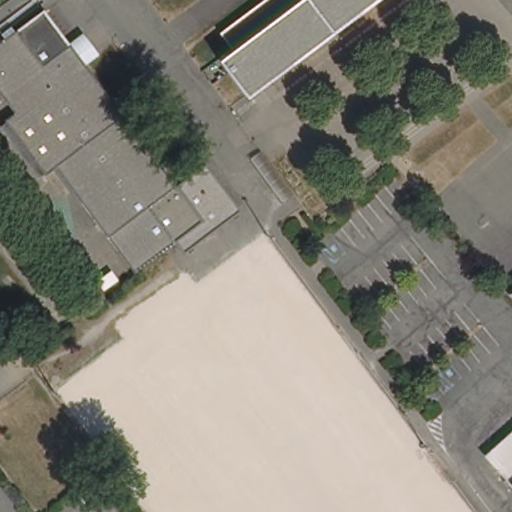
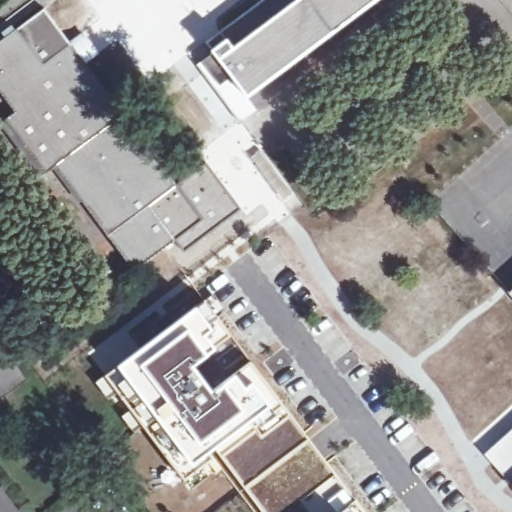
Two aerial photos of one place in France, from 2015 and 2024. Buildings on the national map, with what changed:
unchanged [(218,58),(232,47),(230,44),(228,46),(225,41),(227,39),(222,31),(264,0),(369,0),(245,93),(218,58)]
unchanged [(207,163),(242,209),(184,253),(175,240),(135,270),(55,164),(46,171),(6,119),(15,111),(0,91),(0,42),(43,10),(70,44),(82,35),(97,55),(85,65),(177,186),(207,163)]
new [(130,321),(181,283),(190,293),(182,299),(187,306),(136,345),(103,373),(89,353),(130,321)]
unchanged [(512,290),(512,295),(510,293),(512,290)]
new [(316,488),(280,512),(265,512),(246,490),(250,487),(246,482),(261,468),(276,454),(262,432),(258,428),(257,429),(256,429),(220,455),(218,452),(181,479),(138,423),(130,429),(121,415),(128,409),(115,389),(106,396),(95,381),(103,373),(136,345),(187,306),(195,300),(208,316),(212,313),(233,342),(227,347),(216,355),(225,366),(237,356),(233,351),(231,352),(230,350),(238,344),(248,356),(290,413),(306,434),(335,476),(317,490),(316,488)]
unchanged [(485,454),(512,429),(512,445),(492,463),(485,454)]
unchanged [(512,445),(512,484),(492,463),(512,445)]
new [(335,511),(325,498),(342,485),(351,499),(339,508),(342,512),(333,512),(335,511)]

